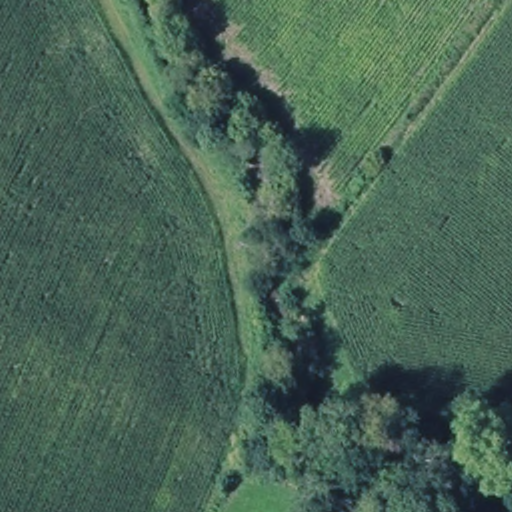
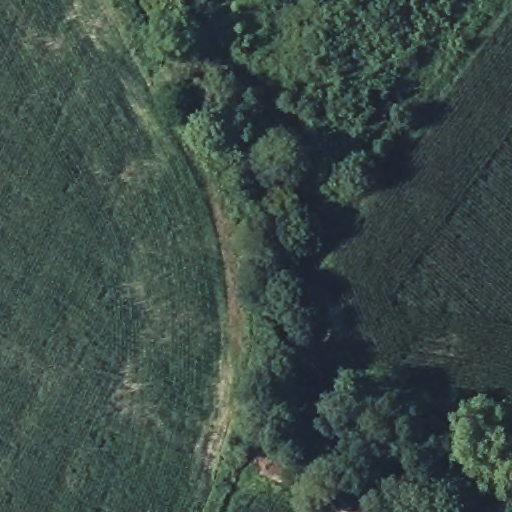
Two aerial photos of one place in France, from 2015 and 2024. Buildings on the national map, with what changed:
[]

